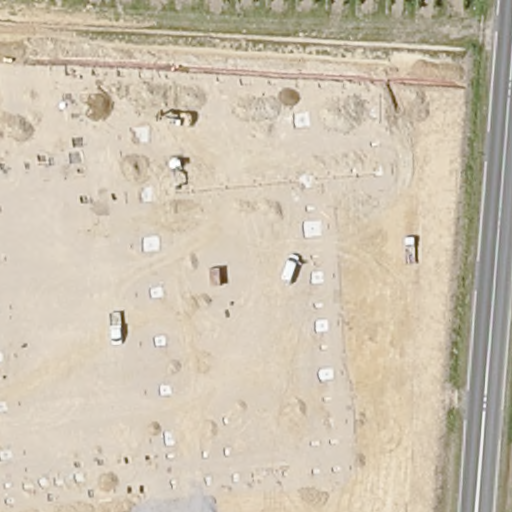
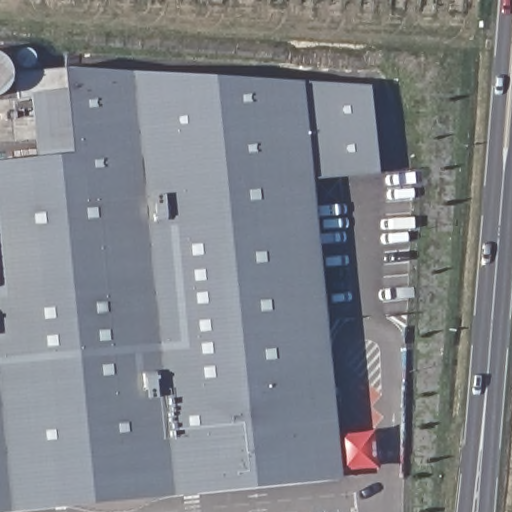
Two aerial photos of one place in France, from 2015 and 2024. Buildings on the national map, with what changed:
new [(175,495),(10,510),(0,511),(0,161),(38,157),(31,96),(20,98),(18,73),(64,70),(133,72),(303,82),(371,86),(379,173),(313,179),(342,479),(175,495)]
demolished [(83,463),(0,470),(0,412),(5,412),(2,394),(73,389),(83,463)]

